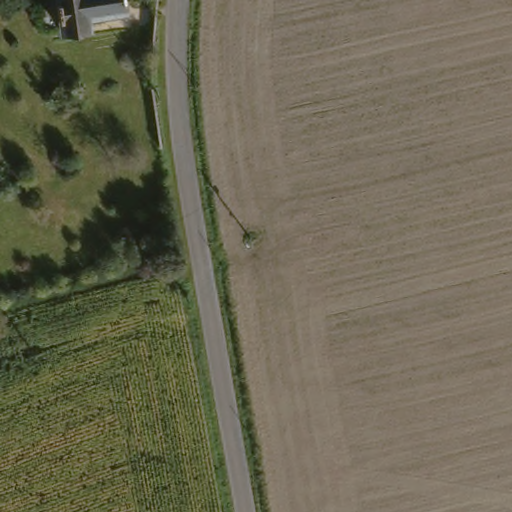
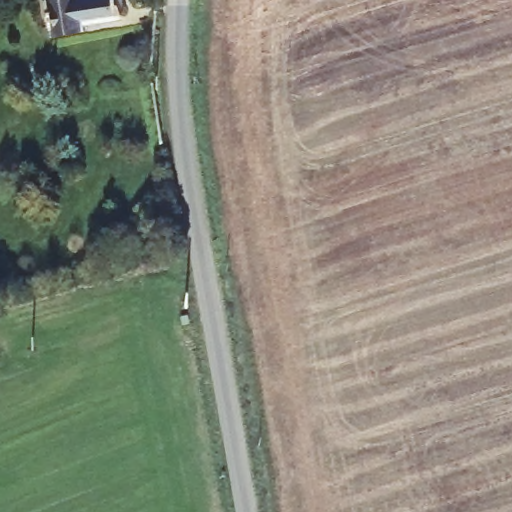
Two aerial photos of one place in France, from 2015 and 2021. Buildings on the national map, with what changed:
unchanged [(130,5),(95,11),(95,18),(65,22),(61,0),(129,0),(130,5)]

